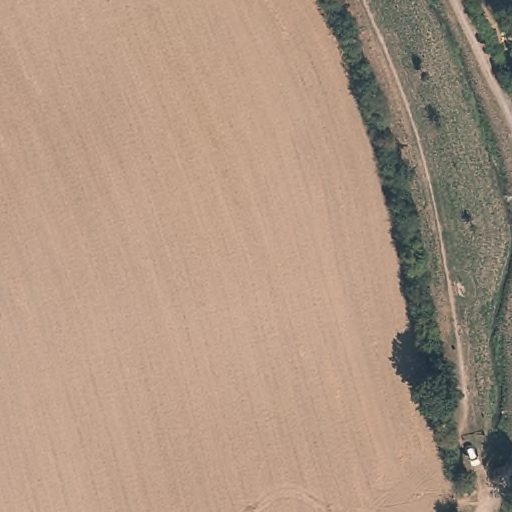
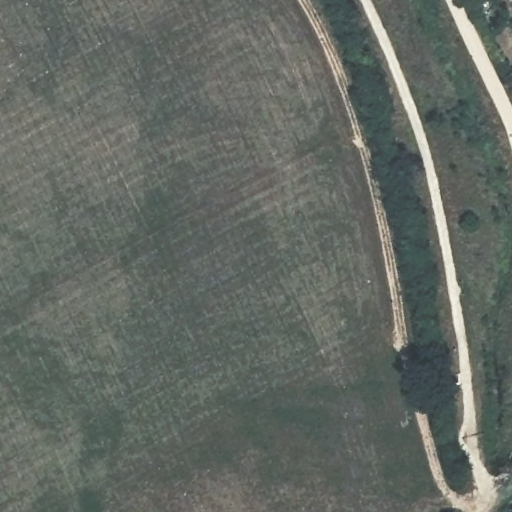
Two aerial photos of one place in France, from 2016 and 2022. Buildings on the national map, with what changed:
[]

